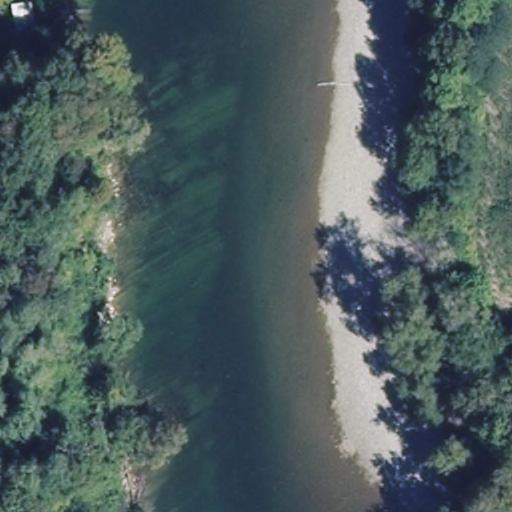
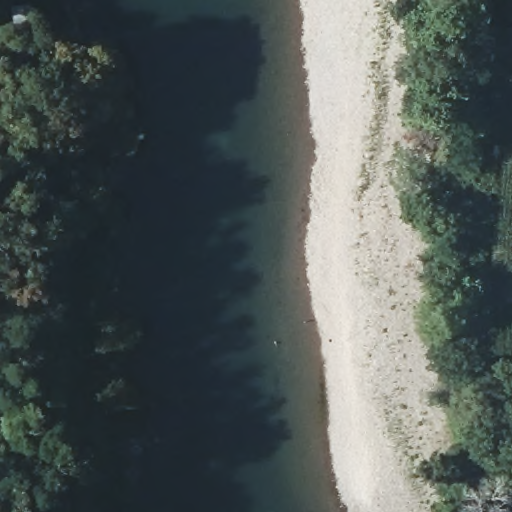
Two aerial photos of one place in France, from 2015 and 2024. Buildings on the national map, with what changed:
unchanged [(35,11),(42,46),(22,49),(16,12),(35,11)]

